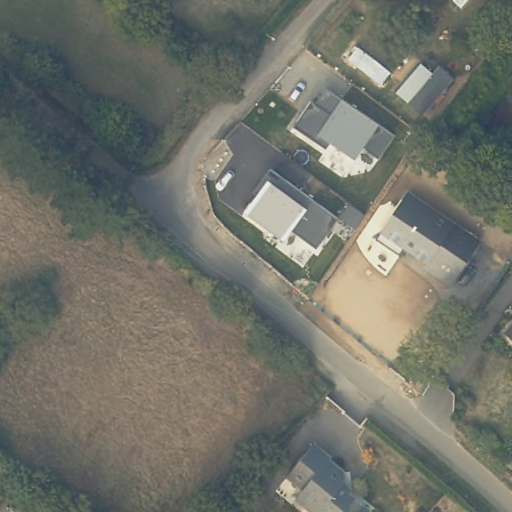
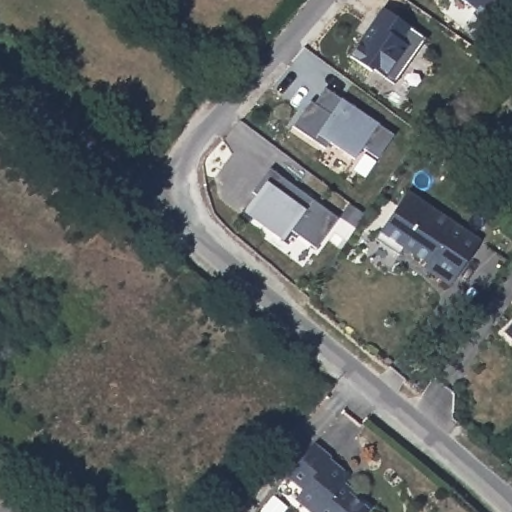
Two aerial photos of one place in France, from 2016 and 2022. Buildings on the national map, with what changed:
unchanged [(264,0),(233,2),(227,3),(226,0),(264,0)]
new [(464,0),(502,0),(487,19),(464,0)]
new [(394,83),(384,76),(350,54),(384,6),(412,26),(427,38),(394,83)]
demolished [(453,81),(422,116),(407,104),(436,68),(453,81)]
unchanged [(294,126),(310,101),(315,105),(325,89),(393,134),(378,158),(364,147),(354,159),(330,141),(327,149),(294,126)]
unchanged [(338,218),(317,248),(293,229),(284,240),(244,213),(259,194),(254,190),(270,169),(338,218)]
unchanged [(377,240),(408,191),(481,242),(452,286),(423,269),(428,263),(404,249),(399,254),(377,240)]
unchanged [(505,334),(512,326),(512,340),(505,334)]
unchanged [(370,512),(311,512),(300,504),(308,494),(292,481),(318,448),(335,462),(334,464),(349,476),(349,486),(345,491),(370,512)]

